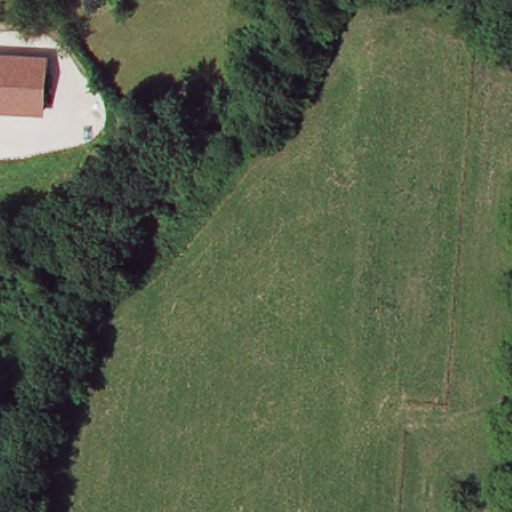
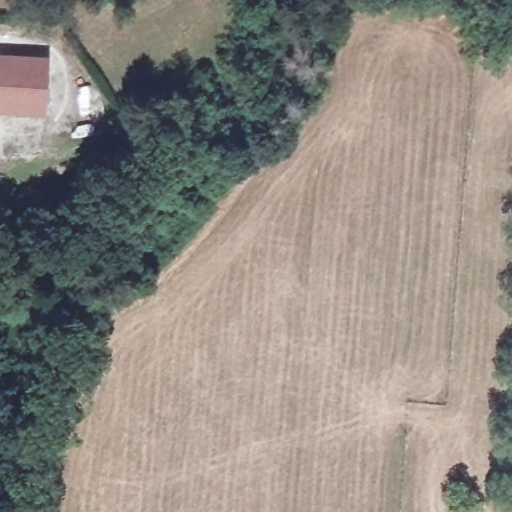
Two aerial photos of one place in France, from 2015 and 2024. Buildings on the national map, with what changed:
unchanged [(0,114),(0,56),(47,59),(42,116),(0,114)]

